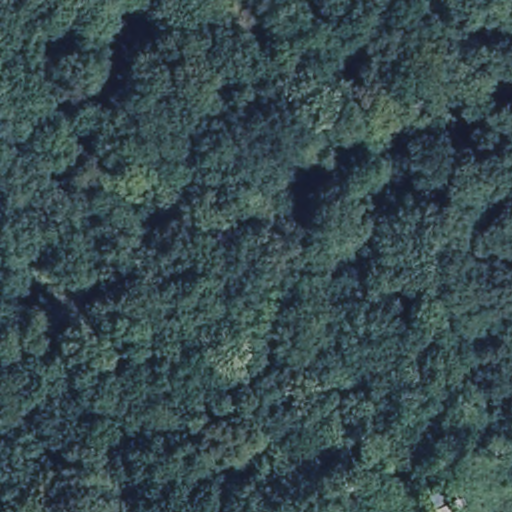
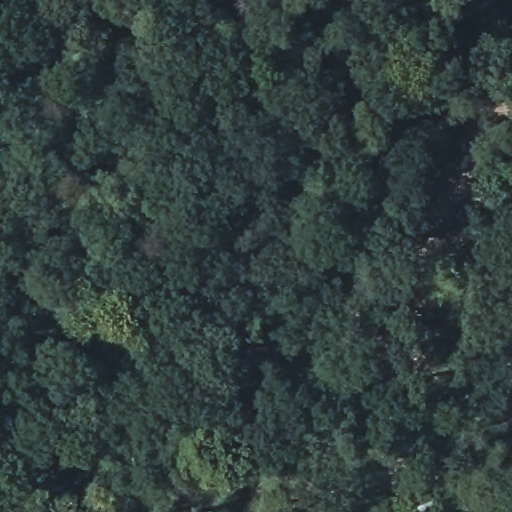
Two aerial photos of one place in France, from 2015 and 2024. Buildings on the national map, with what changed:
unchanged [(430,480),(456,505),(446,512),(428,512),(411,495),(430,480)]

